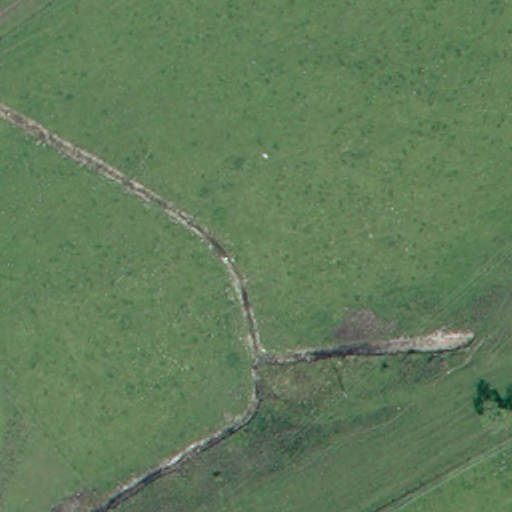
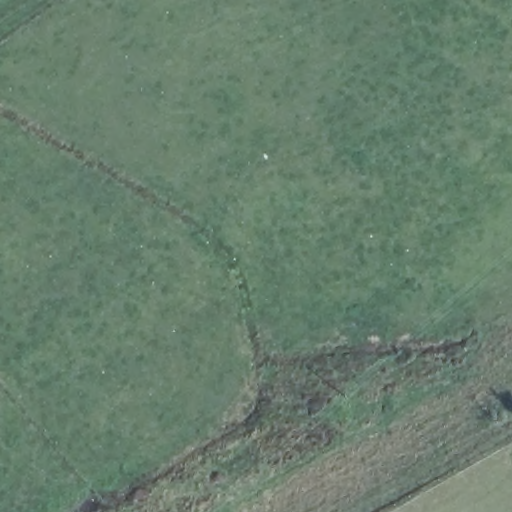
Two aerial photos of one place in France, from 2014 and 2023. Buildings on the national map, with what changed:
[]

